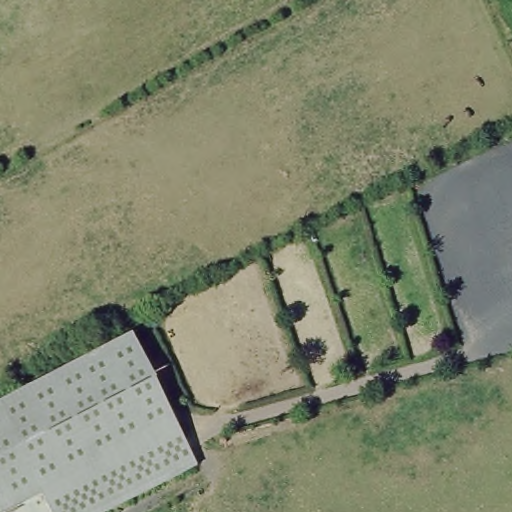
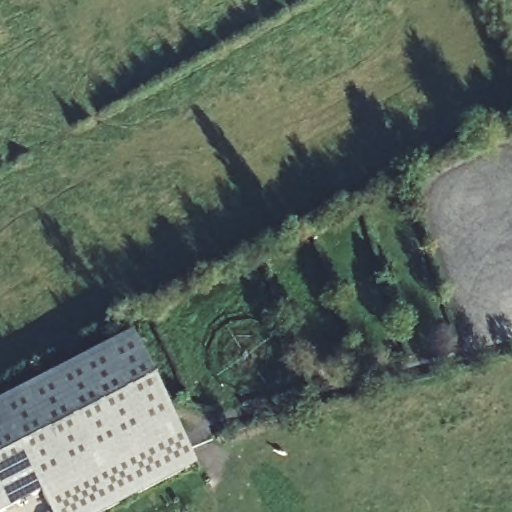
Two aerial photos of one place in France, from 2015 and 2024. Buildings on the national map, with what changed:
unchanged [(203,462),(105,512),(60,512),(48,491),(7,512),(0,512),(0,403),(136,332),(203,462)]

